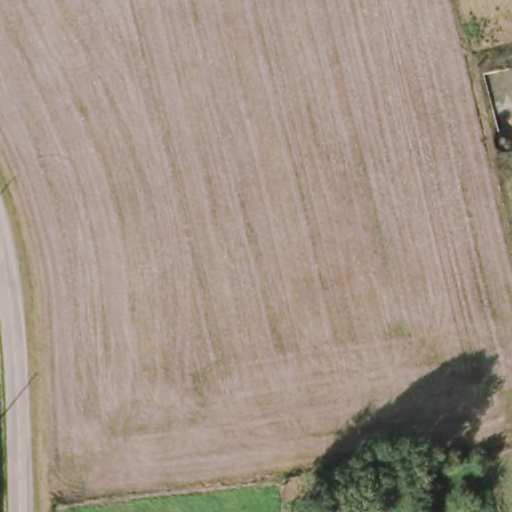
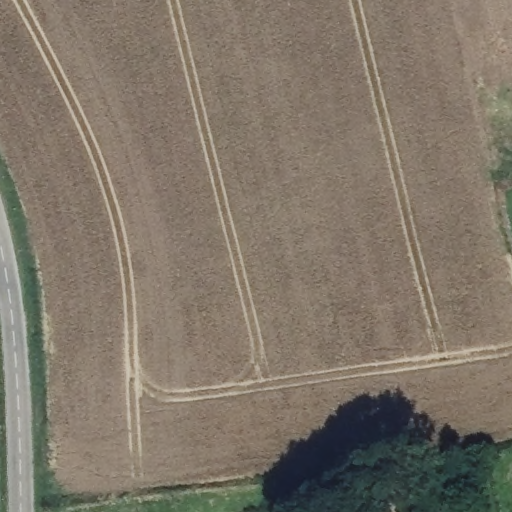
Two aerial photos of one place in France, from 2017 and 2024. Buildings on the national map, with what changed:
unchanged [(399,477),(399,503),(379,505),(379,478),(399,477)]

